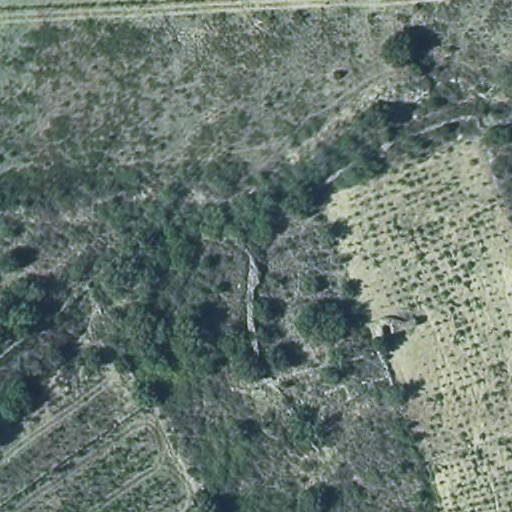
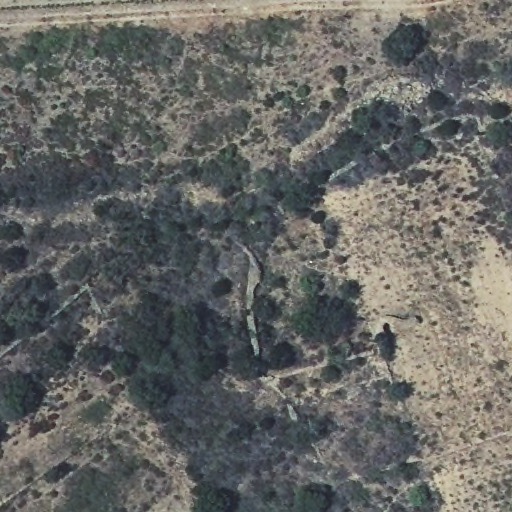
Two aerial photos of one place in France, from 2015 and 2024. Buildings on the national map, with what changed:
unchanged [(371,320),(390,313),(395,329),(377,337),(371,320)]

